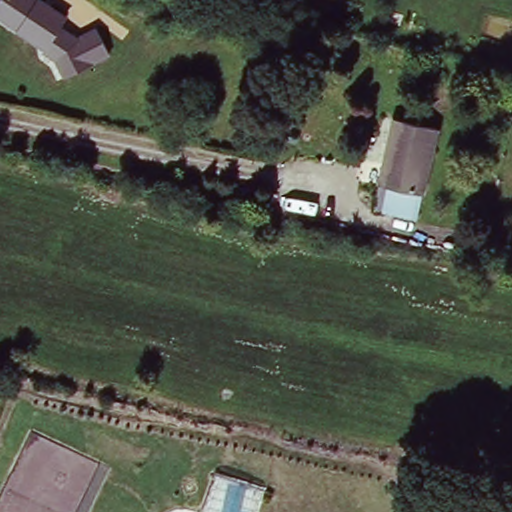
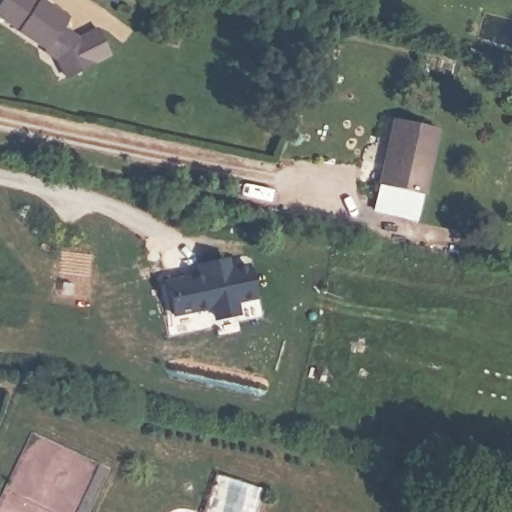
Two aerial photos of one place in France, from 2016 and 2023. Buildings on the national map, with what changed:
unchanged [(51,0),(73,13),(62,23),(80,35),(100,25),(115,52),(68,77),(46,47),(0,19),(0,5),(3,0),(51,0)]
unchanged [(375,210),(395,117),(440,127),(421,219),(375,210)]
new [(164,278),(201,273),(198,258),(227,253),(230,266),(250,264),(255,296),(237,300),(239,314),(211,318),(209,308),(168,315),(164,278)]

